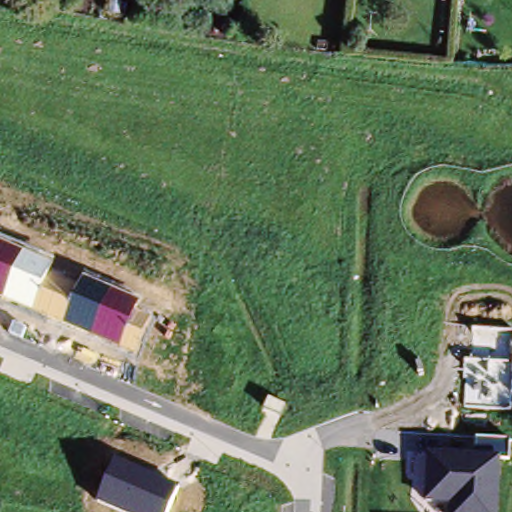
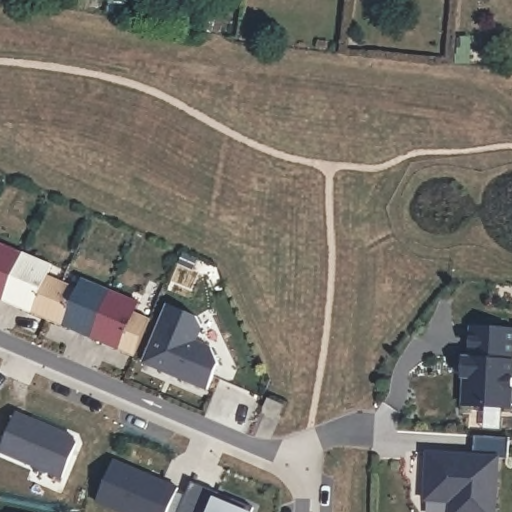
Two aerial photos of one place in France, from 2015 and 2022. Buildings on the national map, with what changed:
unchanged [(55,263),(51,272),(80,284),(82,278),(140,303),(136,312),(152,319),(137,356),(0,298),(0,242),(55,263)]
new [(168,310),(197,322),(202,332),(195,347),(211,354),(218,369),(207,396),(144,368),(168,310)]
unchanged [(511,409),(465,406),(465,359),(472,360),(473,328),(512,331),(512,383),(511,409)]
new [(17,413),(76,438),(78,443),(63,477),(1,451),(17,413)]
unchanged [(474,452),(475,437),(509,440),(508,458),(501,458),(498,512),(452,512),(452,502),(426,501),(429,450),(474,452)]
unchanged [(178,487),(169,512),(123,512),(97,501),(116,460),(178,487)]
new [(196,486),(222,497),(221,500),(235,506),(237,502),(258,512),(257,512),(184,512),(196,486)]

